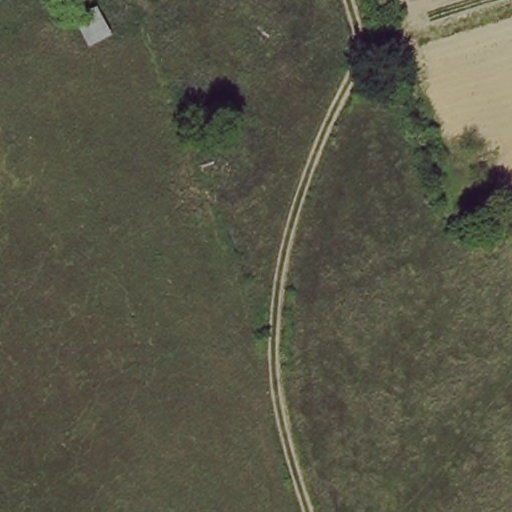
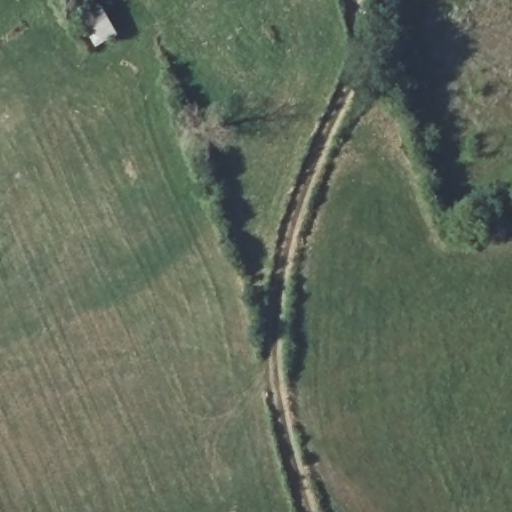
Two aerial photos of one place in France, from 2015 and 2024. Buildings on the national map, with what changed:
unchanged [(109,38),(93,45),(82,22),(98,14),(109,38)]

